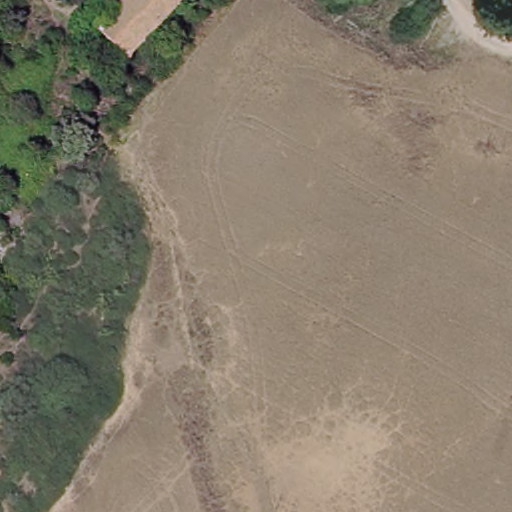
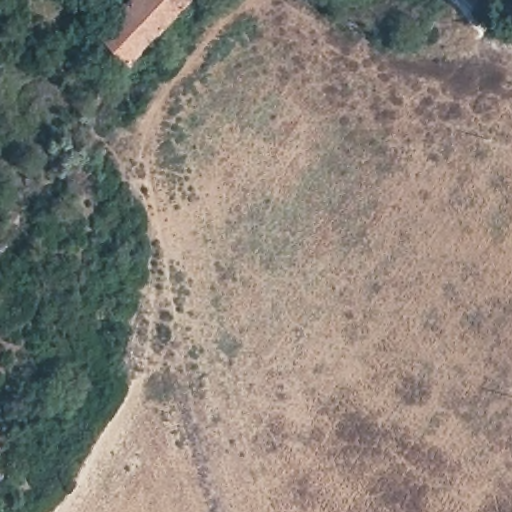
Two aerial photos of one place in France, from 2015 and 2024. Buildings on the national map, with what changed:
unchanged [(124,0),(180,0),(122,62),(95,30),(124,0)]
unchanged [(408,0),(420,0),(411,14),(402,7),(408,0)]

